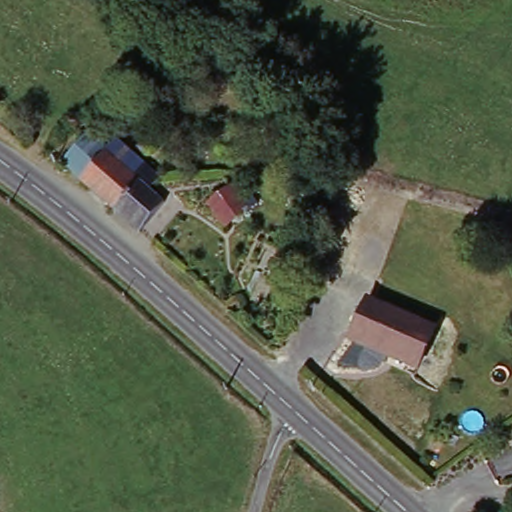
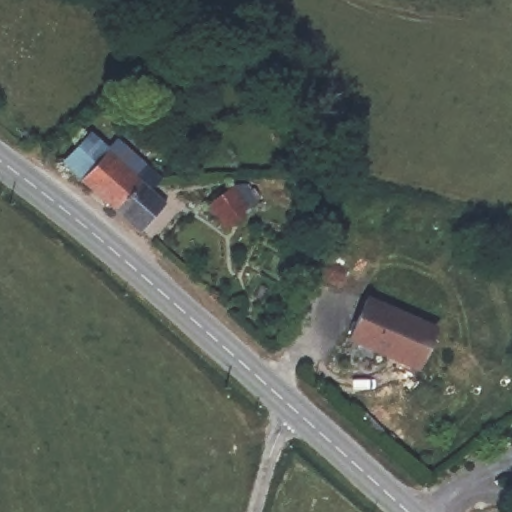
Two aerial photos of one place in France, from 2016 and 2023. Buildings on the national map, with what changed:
unchanged [(141,169),(146,172),(154,165),(169,178),(166,181),(162,186),(152,197),(140,187),(115,215),(80,186),(80,182),(70,174),(61,166),(86,137),(105,152),(104,155),(131,179),(141,169)]
unchanged [(221,179),(249,212),(227,231),(199,196),(221,179)]
unchanged [(140,187),(152,197),(166,209),(140,238),(127,225),(115,215),(140,187)]
unchanged [(393,356),(356,338),(376,296),(442,328),(423,364),(421,369),(393,356)]

